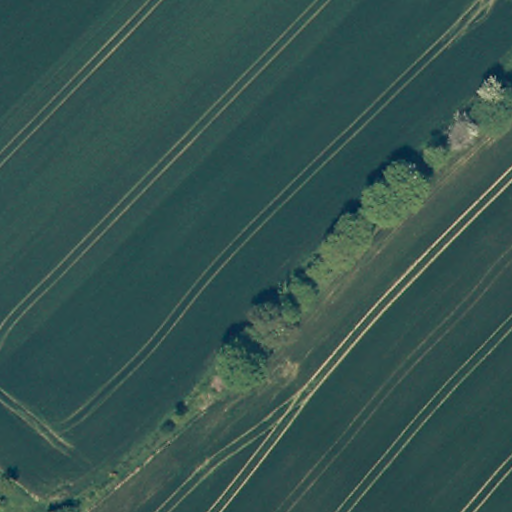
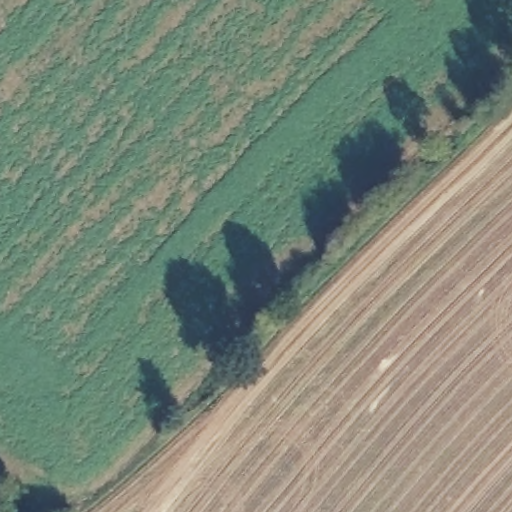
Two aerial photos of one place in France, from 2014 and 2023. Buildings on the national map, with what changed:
[]

